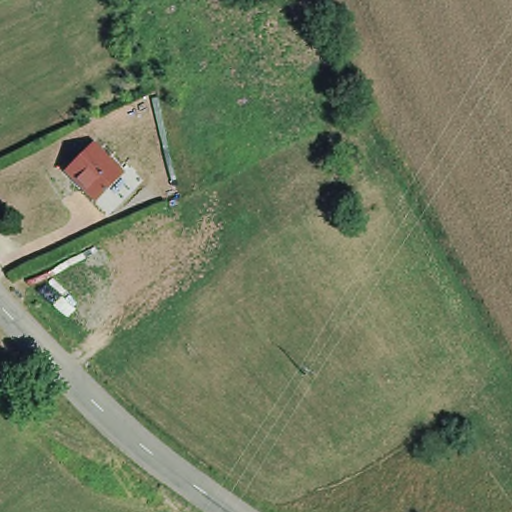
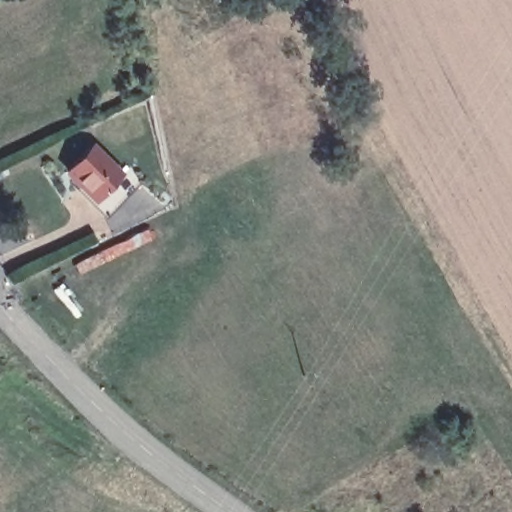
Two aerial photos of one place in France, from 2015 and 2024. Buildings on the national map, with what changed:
unchanged [(115,175),(86,195),(65,165),(93,145),(115,175)]

